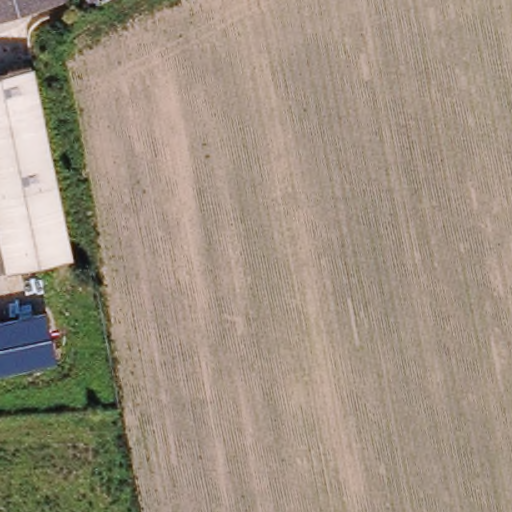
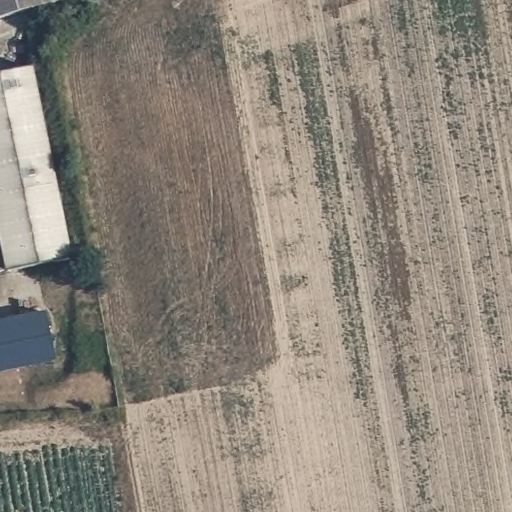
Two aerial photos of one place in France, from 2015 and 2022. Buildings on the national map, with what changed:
unchanged [(0,18),(0,0),(63,0),(63,1),(0,18)]
unchanged [(32,67),(55,178),(70,253),(69,253),(5,267),(5,266),(0,266),(0,74),(32,67)]
unchanged [(55,361),(0,372),(0,320),(45,311),(55,361)]

